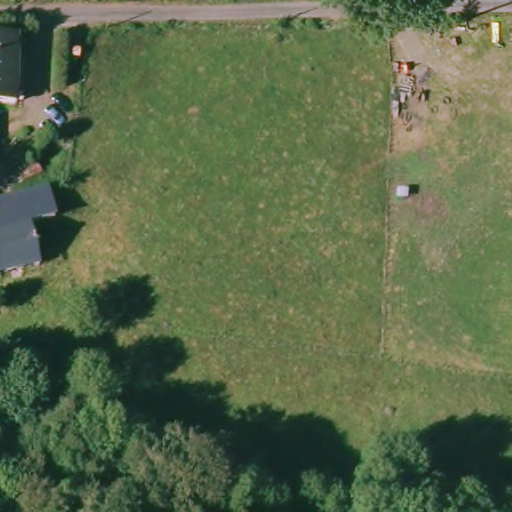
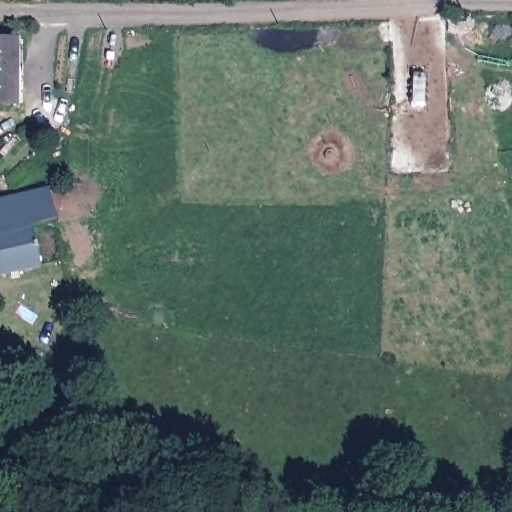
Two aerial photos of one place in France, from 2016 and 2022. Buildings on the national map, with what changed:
unchanged [(0,107),(0,42),(24,42),(20,107),(0,107)]
unchanged [(59,216),(37,224),(44,266),(0,277),(0,205),(52,187),(59,216)]

